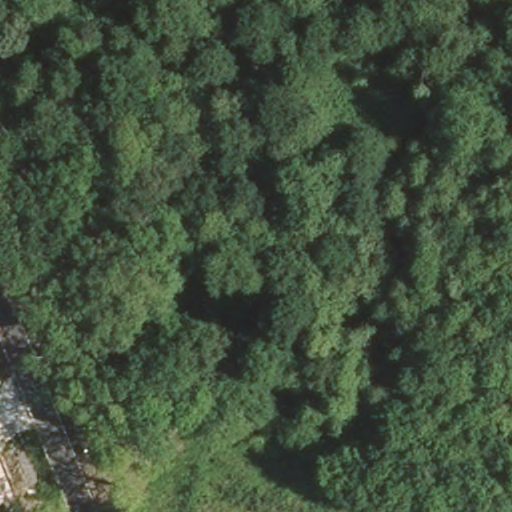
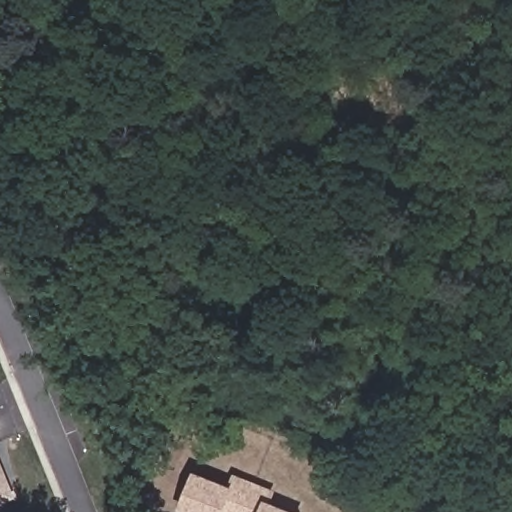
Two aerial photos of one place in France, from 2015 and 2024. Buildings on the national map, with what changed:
unchanged [(15,501),(0,507),(0,461),(15,501)]
new [(196,471),(229,485),(234,474),(277,491),(271,502),(295,512),(180,512),(196,471)]

